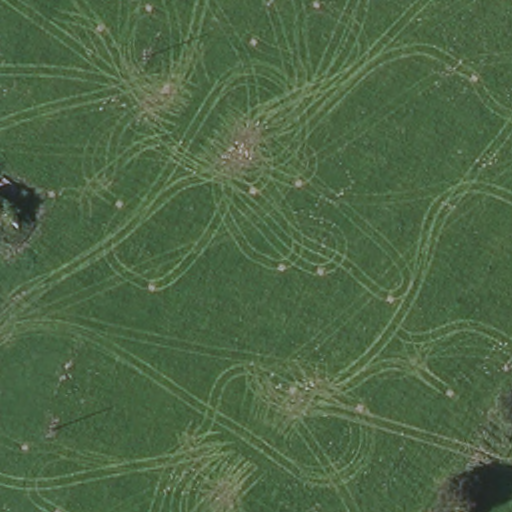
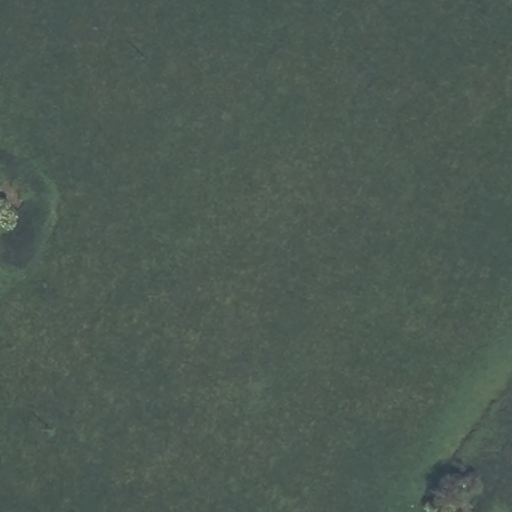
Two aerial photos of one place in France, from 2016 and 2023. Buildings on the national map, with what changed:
unchanged [(14,226),(0,216),(0,193),(25,210),(14,226)]

